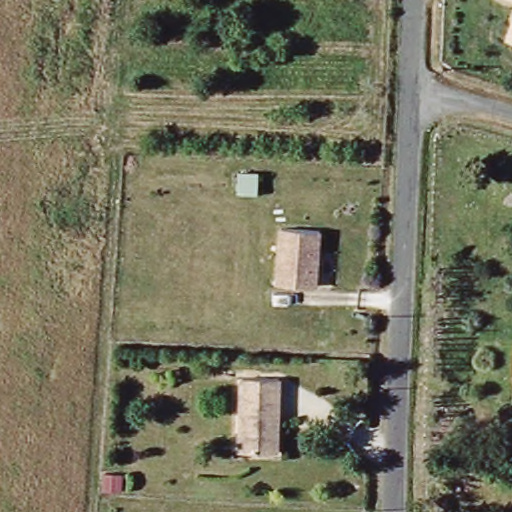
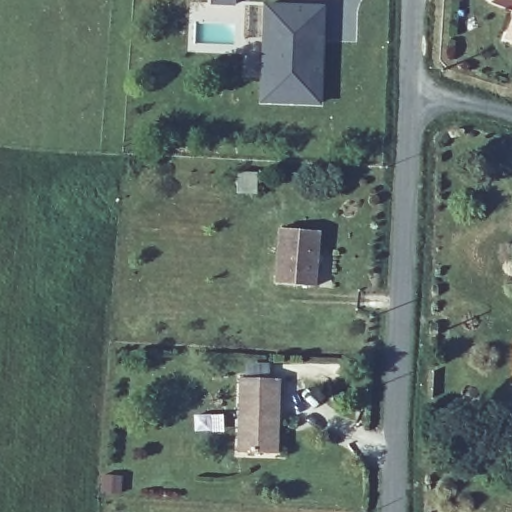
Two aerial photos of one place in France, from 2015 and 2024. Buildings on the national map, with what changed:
new [(322,105),(262,104),(263,5),(327,5),(322,105)]
unchanged [(511,38),(512,35),(512,40),(511,39),(511,38)]
unchanged [(323,234),(318,288),(278,284),(282,230),(323,234)]
unchanged [(281,383),(277,456),(241,454),(245,381),(281,383)]

